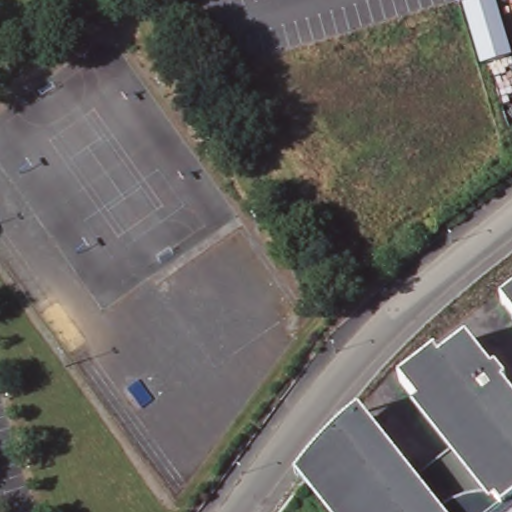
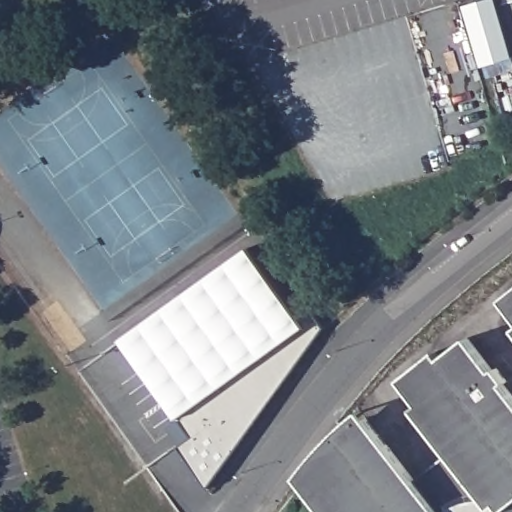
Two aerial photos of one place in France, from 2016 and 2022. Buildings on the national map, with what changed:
unchanged [(464,8),(489,0),(496,0),(512,53),(512,58),(482,68),(464,8)]
new [(301,319),(312,310),(324,326),(208,487),(169,427),(179,419),(122,337),(249,245),(301,319)]
unchanged [(512,292),(512,304),(506,297),(512,292)]
unchanged [(467,503),(437,463),(456,451),(418,410),(426,403),(406,379),(440,350),(446,359),(472,336),(512,382),(512,512),(450,512),(467,503)]
unchanged [(301,481),(365,409),(445,512),(326,512),(301,481)]

